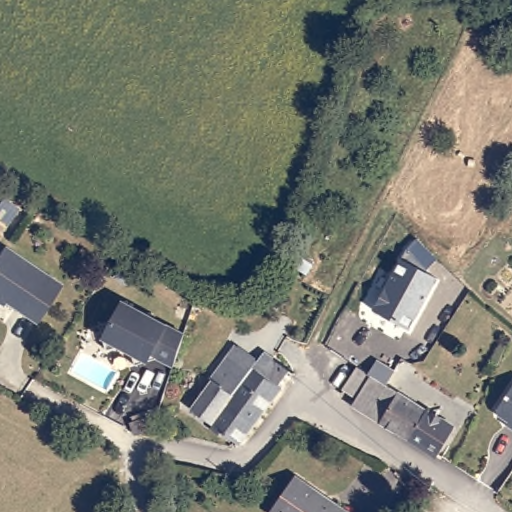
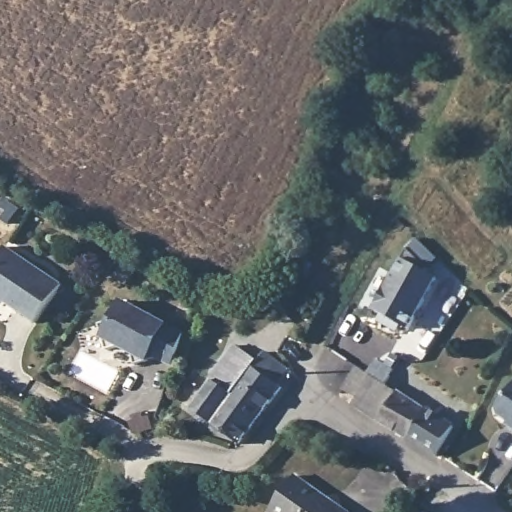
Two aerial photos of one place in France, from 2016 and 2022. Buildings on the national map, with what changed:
unchanged [(374,310),(401,258),(415,237),(436,258),(427,272),(438,278),(410,329),(374,310)]
unchanged [(0,312),(0,257),(2,253),(59,291),(34,330),(3,309),(0,312)]
unchanged [(306,257),(316,263),(309,274),(299,268),(306,257)]
unchanged [(134,368),(131,357),(118,349),(106,353),(98,327),(115,323),(122,304),(183,338),(172,370),(157,362),(146,365),(134,368)]
unchanged [(214,375),(211,372),(235,340),(257,356),(262,359),(272,347),(292,361),(278,381),(282,383),(240,441),(192,405),(214,375)]
unchanged [(363,398),(349,389),(362,367),(374,374),(382,361),(401,372),(392,386),(432,411),(433,410),(460,427),(444,454),(441,458),(358,406),(363,398)]
unchanged [(497,409),(512,388),(512,424),(498,415),(497,409)]
unchanged [(148,416),(152,428),(133,434),(132,435),(131,433),(128,424),(148,416)]
unchanged [(348,512),(271,512),(295,476),(348,512)]

